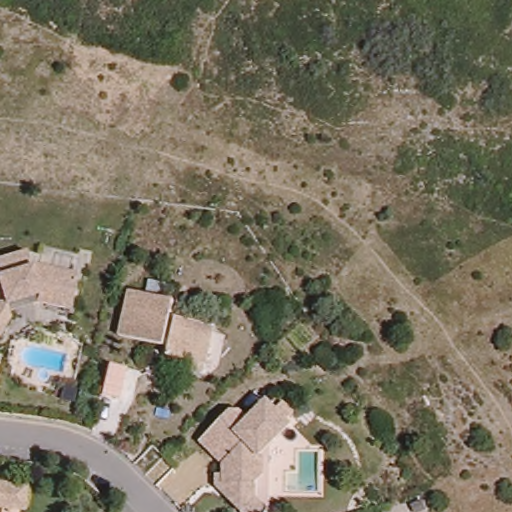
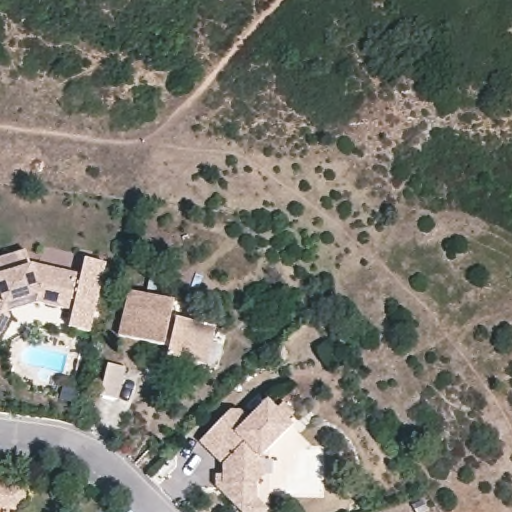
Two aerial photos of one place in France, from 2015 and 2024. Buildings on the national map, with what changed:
unchanged [(36,301),(6,309),(8,314),(0,331),(0,256),(26,249),(29,263),(77,274),(70,302),(69,309),(36,301)]
new [(107,263),(90,332),(70,326),(87,257),(107,263)]
unchanged [(119,335),(130,291),(175,301),(174,306),(172,317),(178,318),(216,327),(207,365),(168,356),(170,347),(164,346),(119,335)]
unchanged [(212,488),(212,475),(220,475),(220,466),(196,442),(227,410),(238,410),(246,419),(266,400),(274,409),(281,402),(292,412),(285,419),(290,425),(294,429),(263,460),(267,463),(264,478),(254,483),(252,498),(263,510),(261,512),(236,512),(219,495),(212,488)]
unchanged [(6,484),(4,508),(0,508),(0,484),(6,484)]
unchanged [(19,510),(17,512),(0,512),(0,508),(4,508),(6,484),(21,486),(19,510)]

